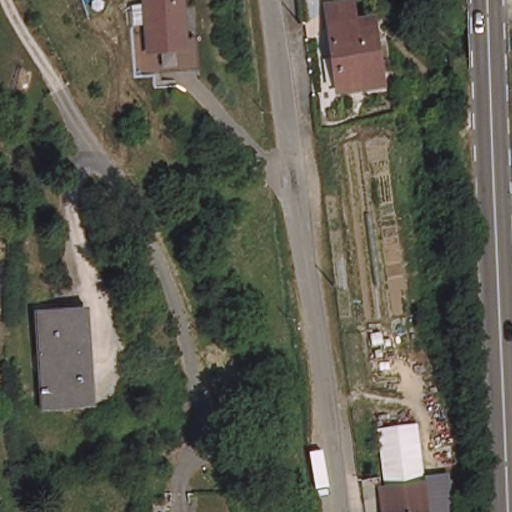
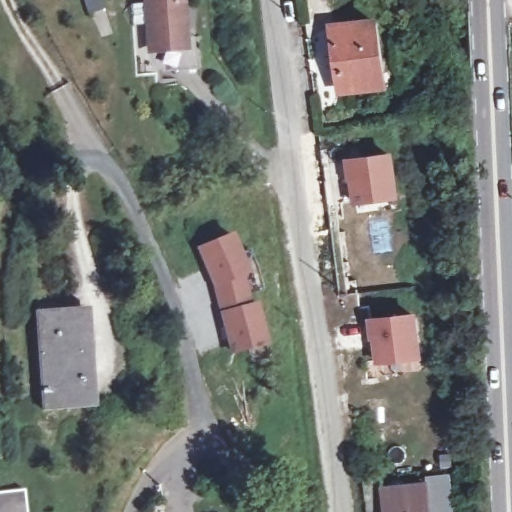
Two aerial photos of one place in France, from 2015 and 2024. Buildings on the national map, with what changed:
unchanged [(199,38),(202,71),(145,75),(140,0),(187,0),(192,38),(199,38)]
unchanged [(367,15),(368,31),(373,31),(377,71),(361,73),(362,86),(340,88),(332,20),(317,20),(315,0),(352,0),(355,16),(367,15)]
new [(389,155),(395,196),(355,201),(352,177),(350,177),(347,161),(389,155)]
new [(195,248),(234,232),(250,273),(243,276),(251,303),(257,302),(268,345),(230,355),(219,312),(212,289),(195,248)]
unchanged [(85,307),(92,400),(70,402),(70,406),(50,407),(42,310),(85,307)]
new [(412,315),(417,356),(377,360),(374,337),(372,337),(370,320),(412,315)]
unchanged [(373,484),(417,478),(414,512),(372,512),(373,484)]
new [(27,512),(0,512),(0,493),(25,490),(27,512)]

